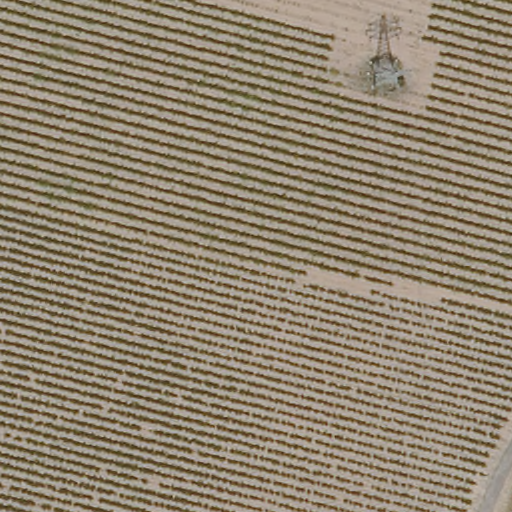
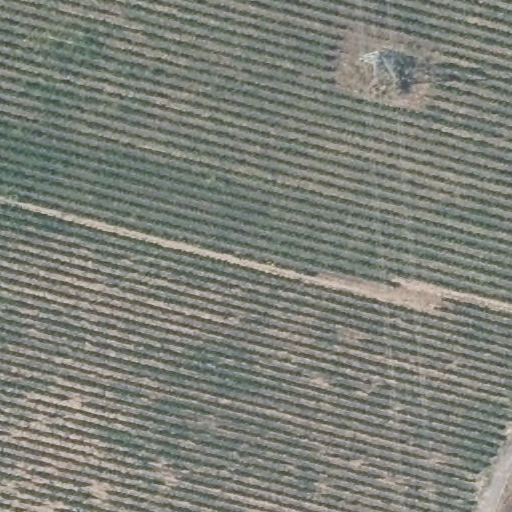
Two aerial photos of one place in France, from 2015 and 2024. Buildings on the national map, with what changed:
[]

